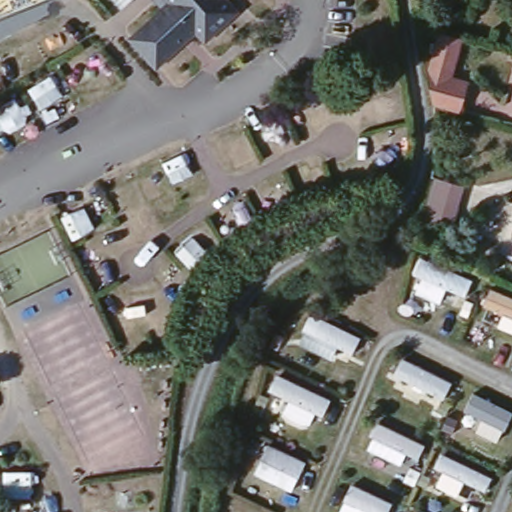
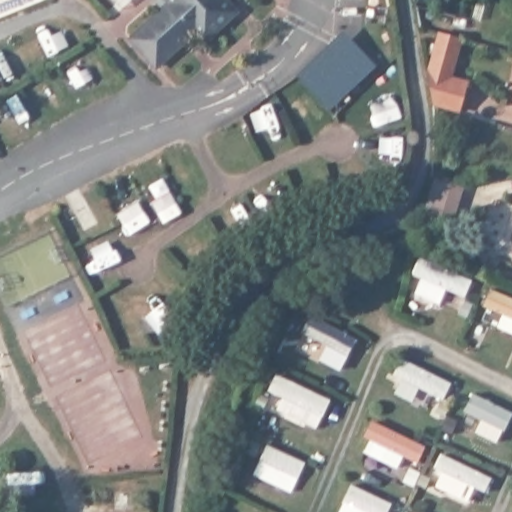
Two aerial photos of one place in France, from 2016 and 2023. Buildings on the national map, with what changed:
unchanged [(150,0),(149,3),(146,0),(150,0)]
unchanged [(208,27),(213,33),(192,44),(175,16),(150,0),(236,0),(208,27)]
unchanged [(418,0),(429,0),(426,9),(416,5),(418,0)]
unchanged [(175,16),(192,44),(159,73),(125,38),(159,6),(175,16)]
new [(300,77),(347,32),(377,64),(332,107),(300,77)]
unchanged [(438,40),(456,44),(450,79),(466,82),(456,114),(432,109),(423,80),(438,40)]
unchanged [(509,91),(512,80),(512,92),(509,91)]
unchanged [(421,229),(423,222),(436,180),(463,187),(450,230),(448,237),(421,229)]
unchanged [(508,234),(512,221),(512,235),(508,234)]
unchanged [(511,248),(512,245),(512,248),(511,248)]

